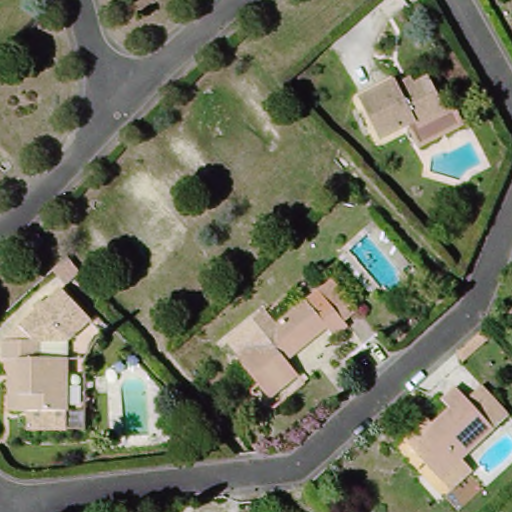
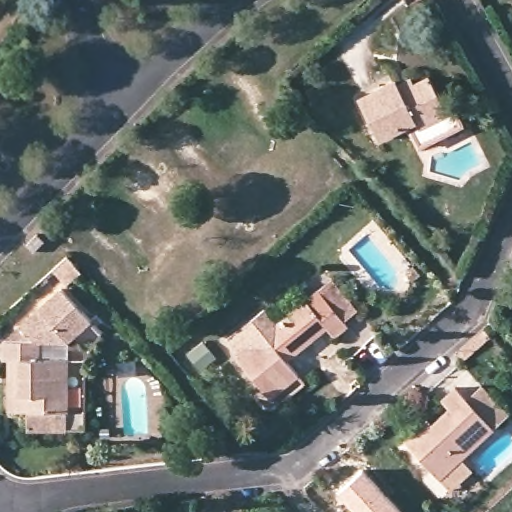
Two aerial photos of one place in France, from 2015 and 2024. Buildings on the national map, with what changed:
unchanged [(412,149),(404,128),(381,139),(359,98),(395,78),(399,83),(411,76),(416,82),(429,74),(448,113),(457,131),(412,149)]
unchanged [(33,252),(26,245),(37,234),(44,242),(33,252)]
unchanged [(334,331),(328,323),(288,356),(298,370),(270,392),(238,352),(318,286),(333,274),(357,305),(344,316),(349,321),(334,331)]
unchanged [(28,430),(27,410),(9,410),(8,380),(6,359),(3,359),(3,339),(31,340),(20,325),(63,285),(93,318),(70,341),(40,341),(41,357),(69,358),(69,411),(70,429),(28,430)]
unchanged [(435,484),(404,450),(399,445),(422,424),(426,429),(444,411),(437,403),(450,391),(462,405),(477,391),(503,420),(489,433),(456,464),(467,477),(446,496),(435,484)]
new [(356,512),(338,492),(363,469),(403,512),(356,512)]

